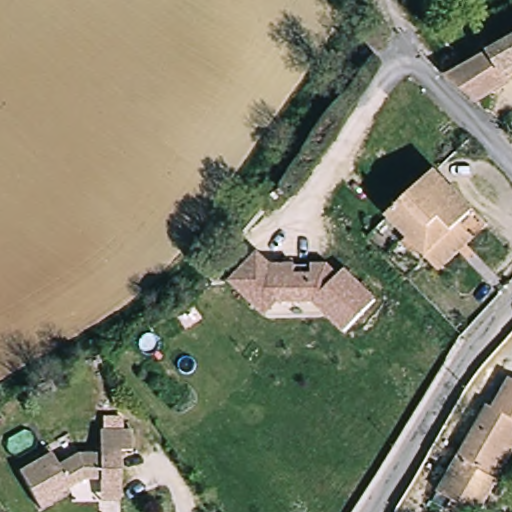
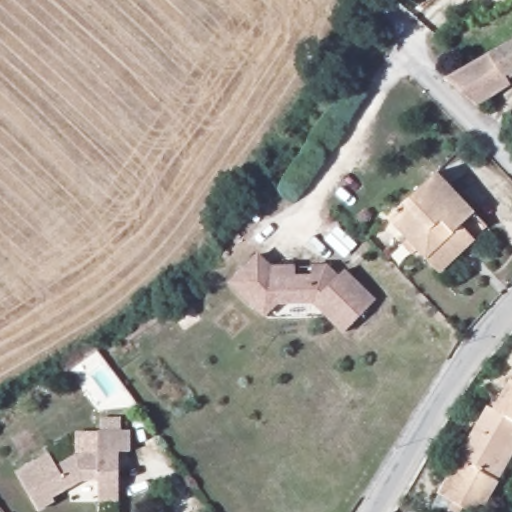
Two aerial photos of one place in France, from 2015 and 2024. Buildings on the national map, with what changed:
unchanged [(499,75),(486,55),(512,40),(512,68),(499,75)]
unchanged [(473,112),(442,80),(467,65),(486,55),(499,75),(503,82),(473,112)]
unchanged [(382,217),(433,171),(470,214),(419,259),(382,217)]
unchanged [(431,273),(419,259),(470,214),(482,228),(431,273)]
unchanged [(256,253),(269,265),(324,266),(335,277),(341,271),(371,302),(340,333),(310,301),(273,300),(261,312),(229,279),(256,253)]
unchanged [(495,412),(502,417),(512,402),(512,445),(490,479),(468,512),(463,512),(440,497),(495,412)]
unchanged [(93,504),(93,491),(92,477),(76,476),(51,489),(54,498),(38,506),(17,468),(49,451),(56,464),(77,453),(103,452),(103,430),(137,431),(137,461),(118,461),(118,491),(118,504),(93,504)]

